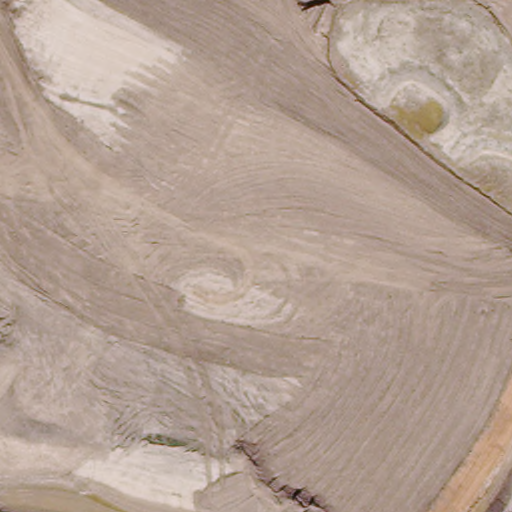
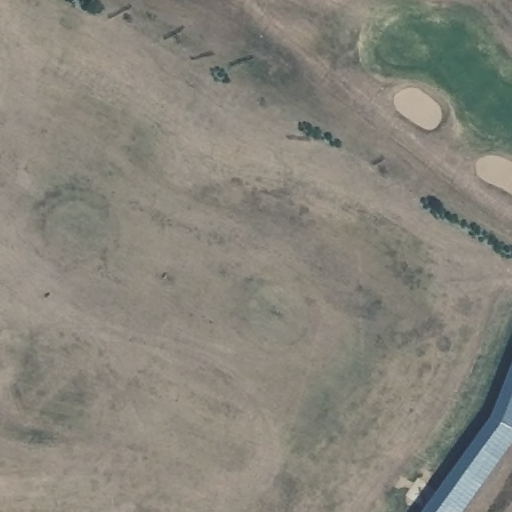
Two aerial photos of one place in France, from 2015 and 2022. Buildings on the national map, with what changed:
new [(512,368),(512,453),(468,512),(421,512),(490,420),(512,368)]

